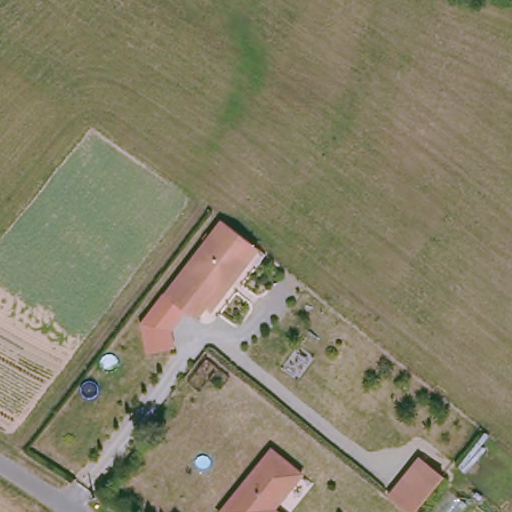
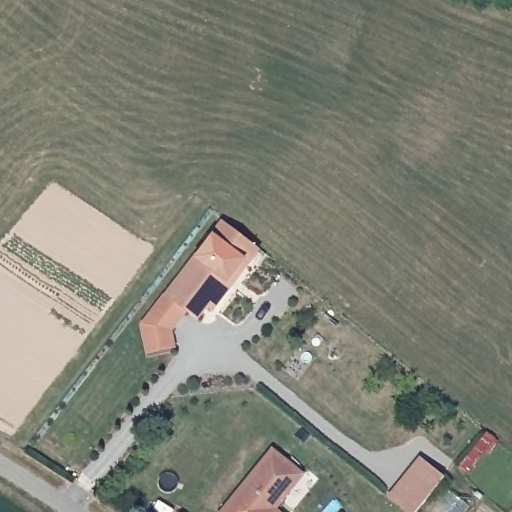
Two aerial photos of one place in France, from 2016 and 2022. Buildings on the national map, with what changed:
unchanged [(221,288),(225,292),(205,316),(201,312),(182,315),(172,348),(145,351),(138,328),(207,239),(220,223),(252,249),(241,264),(221,288)]
unchanged [(301,476),(274,508),(277,512),(221,512),(271,451),(301,476)]
unchanged [(445,474),(414,512),(410,512),(390,495),(422,455),(445,474)]

